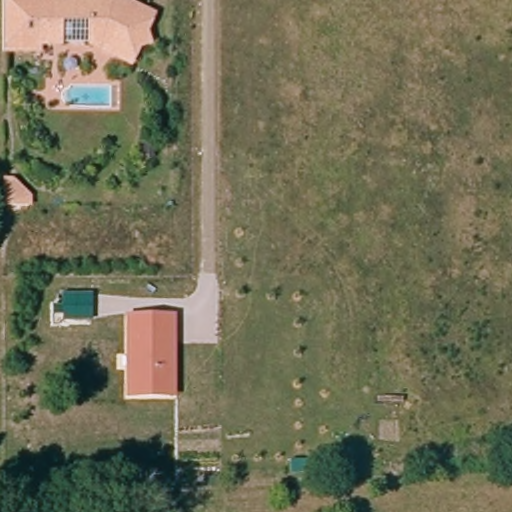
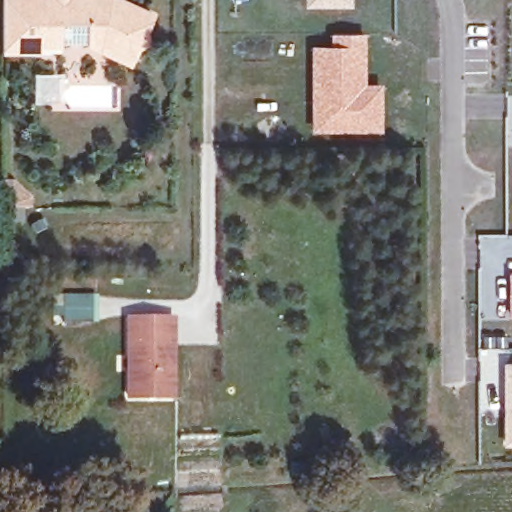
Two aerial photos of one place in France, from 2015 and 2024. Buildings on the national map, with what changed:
unchanged [(19,46),(2,46),(2,0),(19,0),(19,46)]
unchanged [(152,10),(145,27),(149,37),(138,42),(130,59),(87,38),(87,15),(62,15),(62,38),(38,39),(38,46),(19,46),(19,0),(131,0),(152,10)]
new [(350,7),(305,7),(305,0),(351,0),(350,7)]
new [(329,45),(330,32),(368,32),(366,82),(383,82),(384,132),(311,132),(310,44),(329,45)]
unchanged [(11,182),(27,198),(27,207),(2,207),(2,182),(11,182)]
new [(509,318),(508,272),(512,272),(512,318),(509,318)]
unchanged [(63,320),(64,314),(53,313),(53,306),(62,306),(62,293),(91,292),(92,321),(63,320)]
unchanged [(176,396),(125,397),(126,316),(176,313),(176,396)]
new [(512,363),(512,447),(503,447),(504,363),(512,363)]

